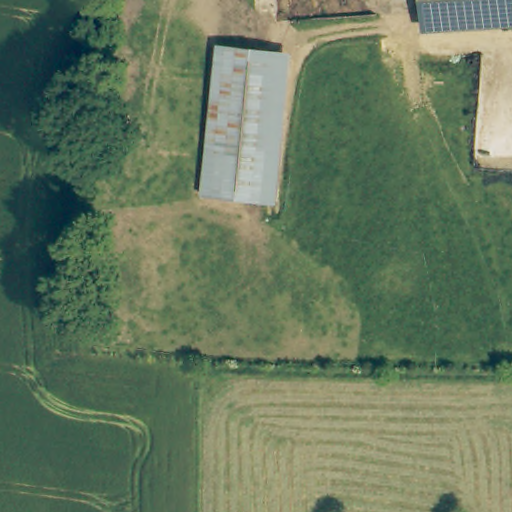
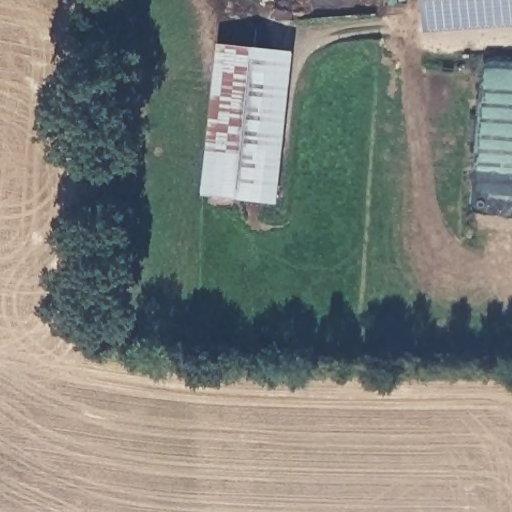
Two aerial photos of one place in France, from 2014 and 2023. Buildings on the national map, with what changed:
unchanged [(429,0),(512,0),(512,22),(431,29),(429,0)]
unchanged [(275,201),(204,196),(215,74),(217,46),(290,52),(288,69),(275,201)]

